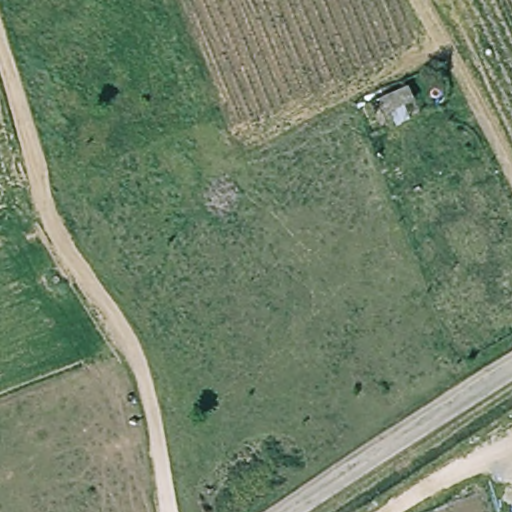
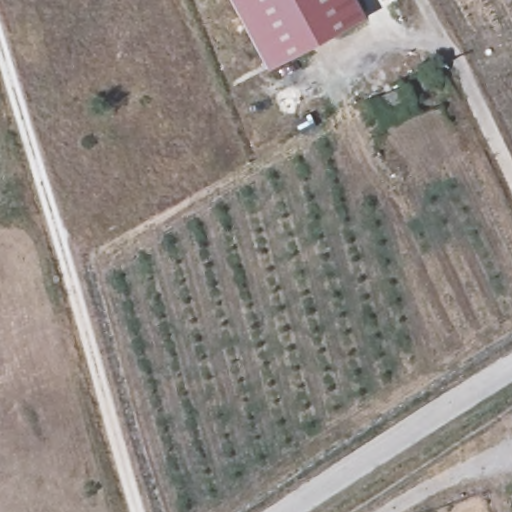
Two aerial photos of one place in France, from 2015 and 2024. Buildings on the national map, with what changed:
new [(360,22),(261,72),(224,0),(348,0),(360,22)]
unchanged [(384,130),(372,101),(408,84),(420,115),(384,130)]

